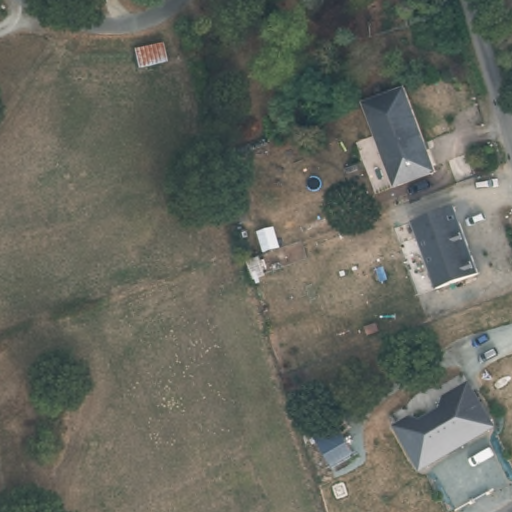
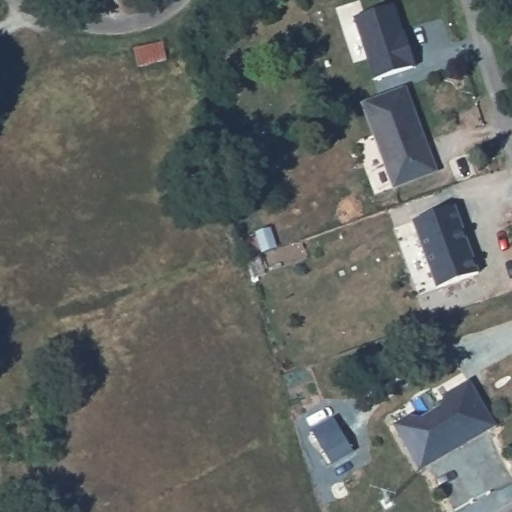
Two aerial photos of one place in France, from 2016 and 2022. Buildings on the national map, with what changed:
unchanged [(244,15),(244,0),(267,0),(267,14),(244,15)]
new [(394,5),(416,68),(375,80),(355,17),(394,5)]
unchanged [(164,40),(168,61),(138,67),(135,46),(164,40)]
unchanged [(405,89),(436,175),(392,191),(362,105),(405,89)]
unchanged [(412,217),(455,202),(480,273),(437,287),(412,217)]
unchanged [(413,416),(424,419),(443,408),(446,397),(473,382),(496,422),(493,430),(427,468),(418,466),(396,426),(413,416)]

